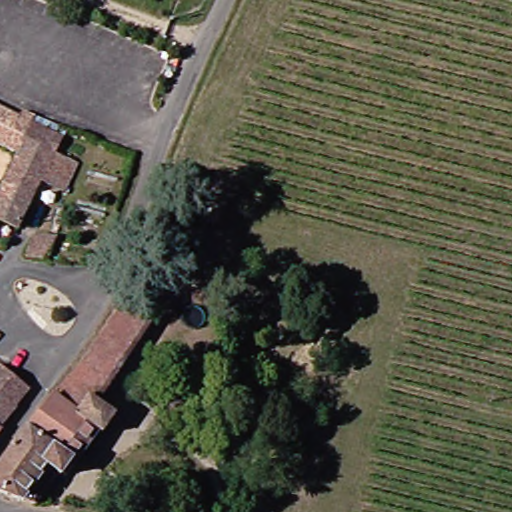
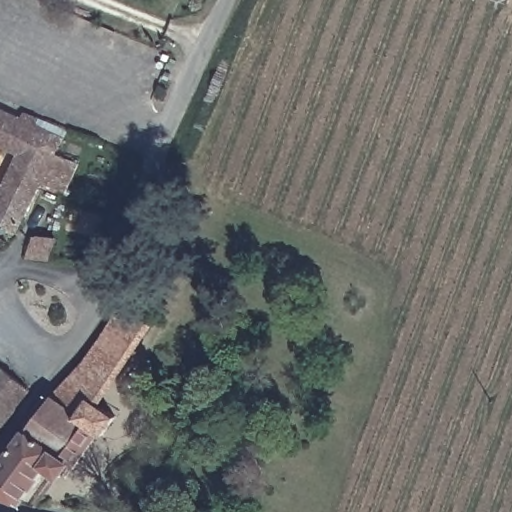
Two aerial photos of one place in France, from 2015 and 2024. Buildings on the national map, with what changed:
unchanged [(0,143),(0,111),(21,121),(26,110),(46,119),(41,129),(27,155),(0,143)]
unchanged [(27,155),(41,129),(71,143),(65,156),(91,168),(77,196),(51,183),(28,227),(0,216),(0,206),(27,155)]
unchanged [(31,241),(54,249),(45,271),(22,264),(31,241)]
unchanged [(65,389),(85,361),(105,332),(122,302),(148,315),(113,405),(128,419),(114,436),(111,433),(80,468),(74,462),(43,497),(0,489),(0,466),(13,449),(65,389)]
unchanged [(0,420),(0,392),(17,404),(12,412),(5,423),(0,420)]

